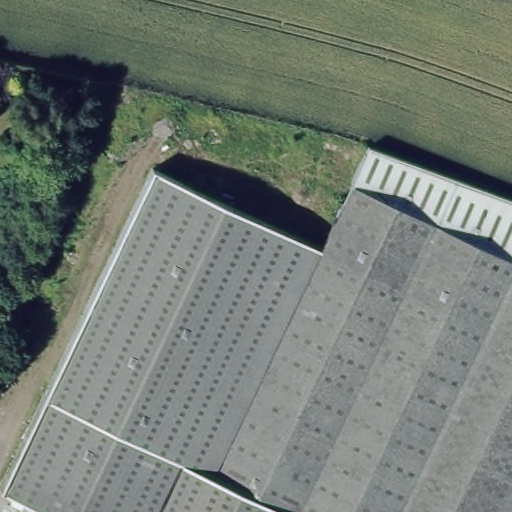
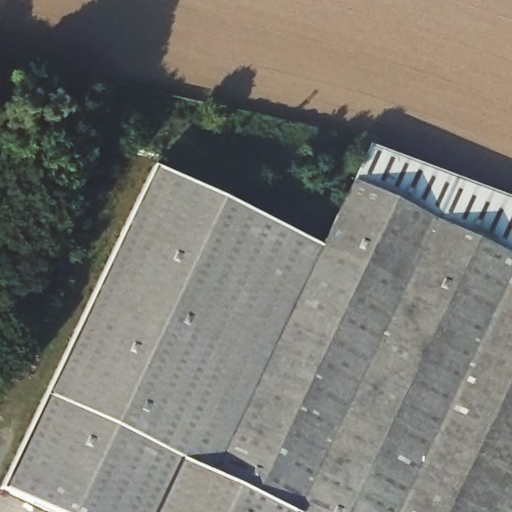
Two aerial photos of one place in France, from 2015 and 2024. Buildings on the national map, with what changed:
unchanged [(368,136),(369,137),(512,189),(512,512),(162,512),(289,231),(323,246),(368,136)]
unchanged [(162,512),(39,512),(0,495),(0,481),(144,169),(289,231),(162,512)]

